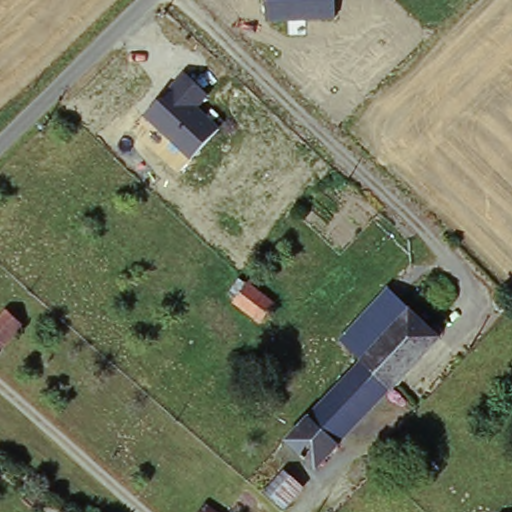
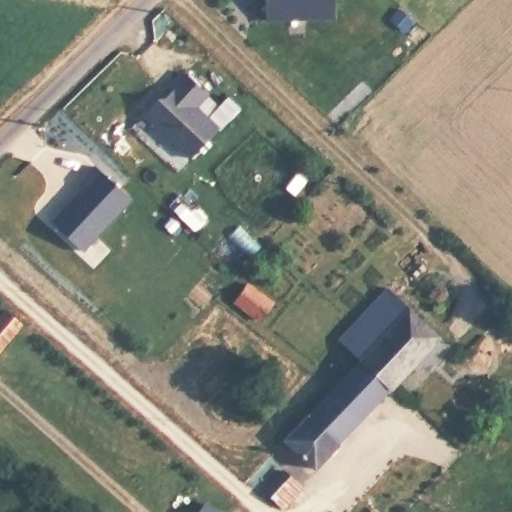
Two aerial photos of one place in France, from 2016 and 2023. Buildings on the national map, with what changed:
unchanged [(266,0),(335,0),(335,17),(267,21),(266,0)]
unchanged [(186,72),(210,95),(200,107),(222,127),(191,161),(144,116),(186,72)]
new [(52,222),(86,184),(82,181),(95,166),(131,202),(84,252),(52,222)]
unchanged [(254,286),(277,307),(264,323),(240,302),(254,286)]
unchanged [(358,364),(339,347),(388,291),(440,338),(391,392),(358,364)]
unchanged [(4,311),(20,325),(0,344),(0,315),(4,311)]
unchanged [(358,364),(391,392),(355,431),(319,472),(286,442),(358,364)]
unchanged [(276,457),(297,475),(277,496),(257,477),(276,457)]
unchanged [(221,512),(201,512),(208,502),(221,512)]

